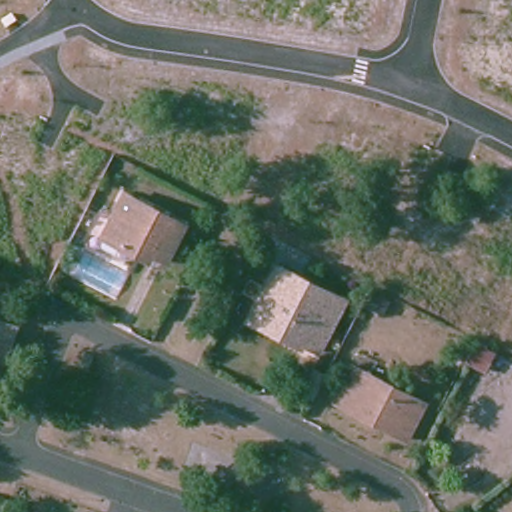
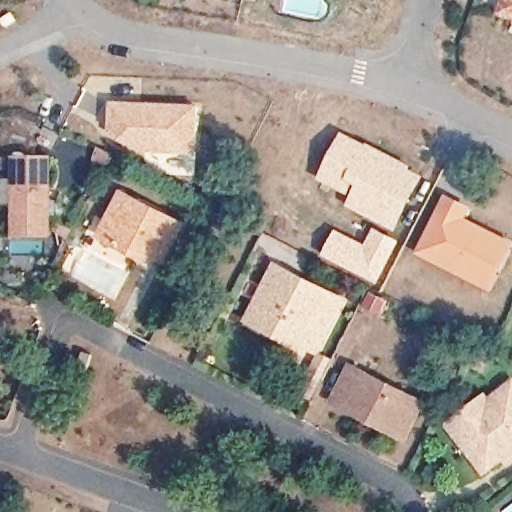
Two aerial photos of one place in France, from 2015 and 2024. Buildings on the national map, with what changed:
new [(509,0),(512,0),(512,14),(505,12),(509,0)]
new [(112,100),(200,105),(199,155),(145,152),(123,141),(115,136),(115,130),(110,130),(112,100)]
new [(368,145),(371,143),(412,166),(412,169),(427,177),(398,231),(350,206),(354,196),(321,178),(343,132),(368,145)]
new [(26,152),(62,153),(59,217),(58,232),(22,230),(22,215),(26,152)]
new [(493,292),(418,253),(447,193),(476,206),(470,218),(512,241),(512,256),(493,292)]
unchanged [(126,251),(105,240),(127,198),(187,230),(167,267),(154,259),(151,264),(126,251)]
unchanged [(322,352),(307,343),(305,347),(263,325),(255,320),(271,288),(283,267),(349,301),(322,352)]
unchanged [(376,294),(393,303),(386,316),(370,306),(376,294)]
unchanged [(6,364),(0,362),(0,323),(18,330),(6,364)]
unchanged [(96,359),(105,362),(98,379),(90,375),(96,359)]
unchanged [(408,440),(389,430),(337,403),(356,367),(369,374),(427,405),(408,440)]
unchanged [(306,391),(315,373),(327,379),(317,398),(306,391)]
demolished [(502,422),(493,411),(484,398),(512,377),(512,449),(493,463),(476,441),(502,422)]
new [(508,465),(506,462),(485,476),(445,424),(487,391),(491,397),(512,381),(512,462),(508,465)]

